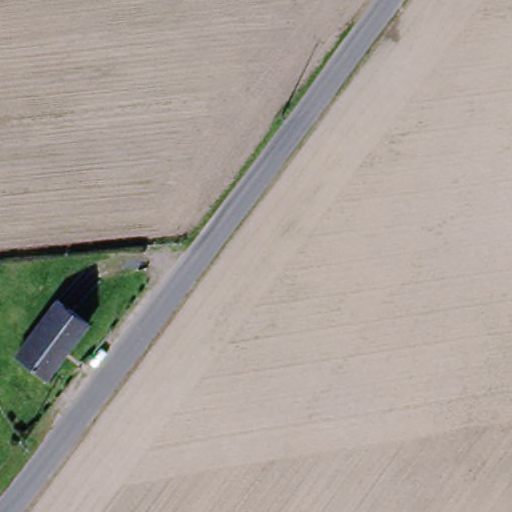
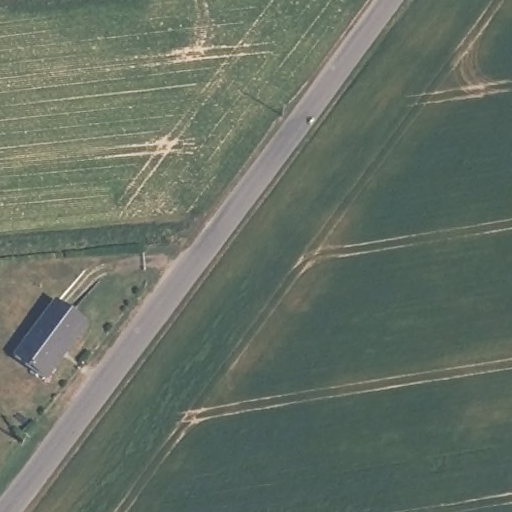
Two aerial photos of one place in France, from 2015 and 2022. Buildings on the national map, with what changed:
unchanged [(87,326),(46,381),(17,360),(57,304),(87,326)]

